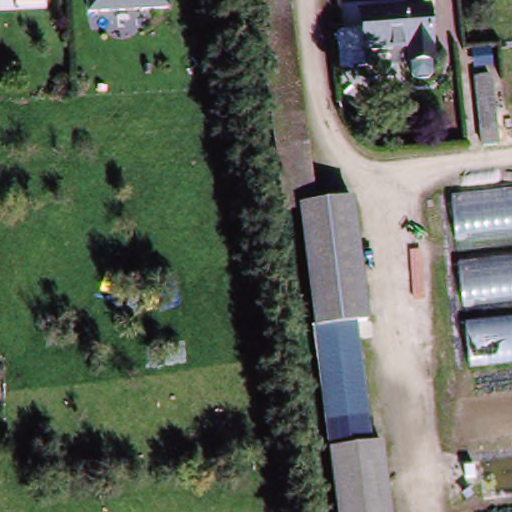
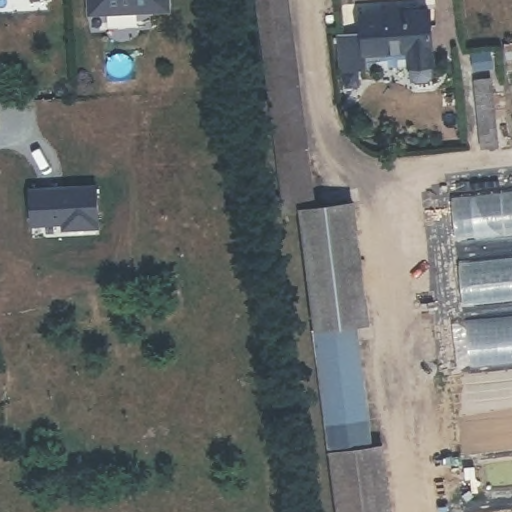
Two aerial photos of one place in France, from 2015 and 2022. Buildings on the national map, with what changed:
unchanged [(170,11),(91,15),(90,0),(170,0),(170,11)]
unchanged [(310,205),(296,208),(282,209),(256,0),(285,0),(310,205)]
unchanged [(430,79),(419,80),(413,74),(412,48),(404,46),(365,51),(366,67),(346,70),(343,38),(361,34),(360,15),(430,8),(436,70),(430,79)]
unchanged [(470,135),(466,85),(483,84),(485,135),(470,135)]
new [(96,185),(99,226),(63,228),(62,222),(31,224),(30,188),(96,185)]
unchanged [(512,232),(457,236),(456,196),(512,190),(512,232)]
unchanged [(310,205),(355,200),(371,325),(360,326),(374,448),(331,453),(296,208),(310,205)]
unchanged [(512,300),(466,305),(463,260),(512,255),(512,300)]
unchanged [(465,325),(512,320),(512,360),(469,365),(465,325)]
unchanged [(388,446),(396,512),(339,512),(331,453),(374,448),(388,446)]

